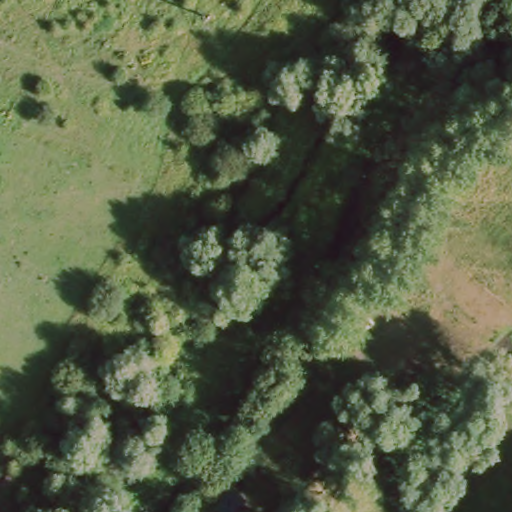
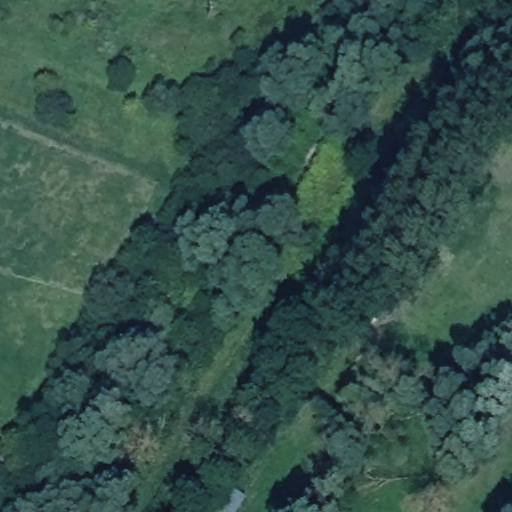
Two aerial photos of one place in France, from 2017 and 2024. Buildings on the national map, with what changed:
unchanged [(363,307),(377,326),(353,345),(338,326),(363,307)]

